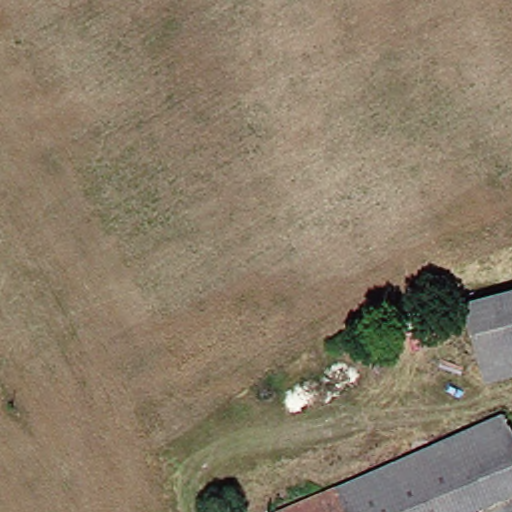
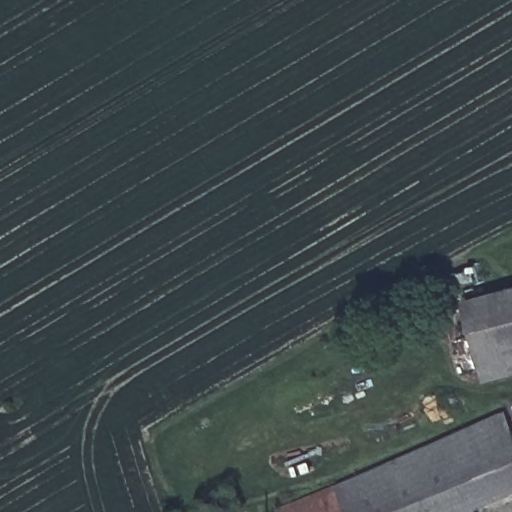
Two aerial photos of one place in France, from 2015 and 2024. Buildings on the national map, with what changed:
unchanged [(481,312),(512,304),(512,361),(495,365),(481,312)]
unchanged [(490,505),(459,436),(512,411),(512,494),(490,505)]
unchanged [(459,436),(490,505),(484,507),(486,512),(290,512),(459,436)]

